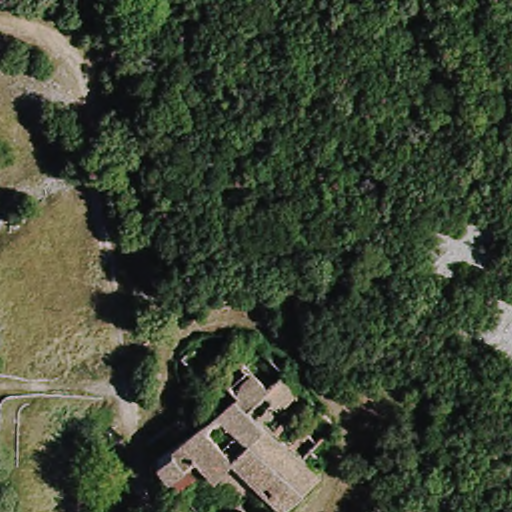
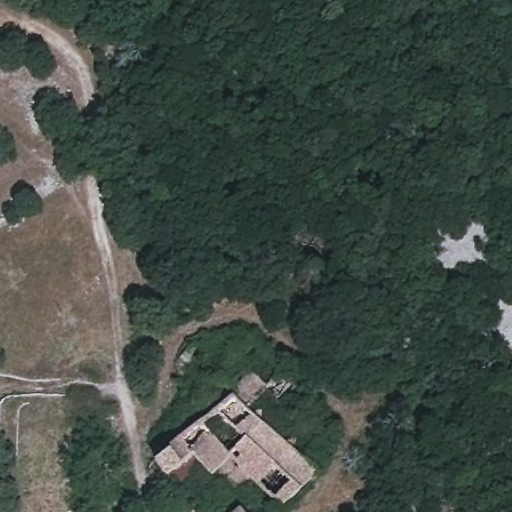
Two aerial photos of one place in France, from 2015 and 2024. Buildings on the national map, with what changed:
unchanged [(337,431),(315,449),(329,466),(318,477),(323,483),(288,512),(239,512),(198,462),(186,471),(192,478),(180,491),(158,465),(237,400),(219,372),(260,342),(337,431)]

